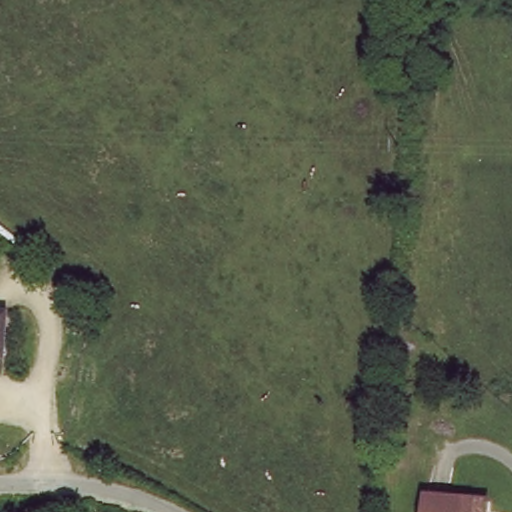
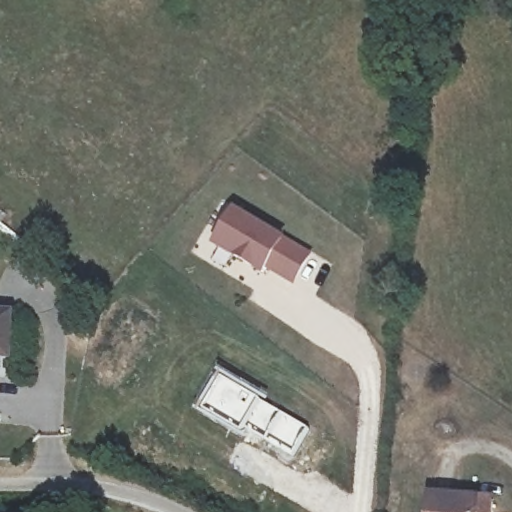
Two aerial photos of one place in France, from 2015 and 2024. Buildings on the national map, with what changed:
new [(268,269),(264,275),(213,247),(235,209),(286,239),(311,255),(293,285),(268,269)]
unchanged [(15,325),(9,363),(0,362),(0,323),(15,325)]
new [(244,425),(239,432),(201,410),(221,377),(306,428),(290,454),(244,425)]
unchanged [(494,503),(493,512),(430,512),(432,496),(494,503)]

